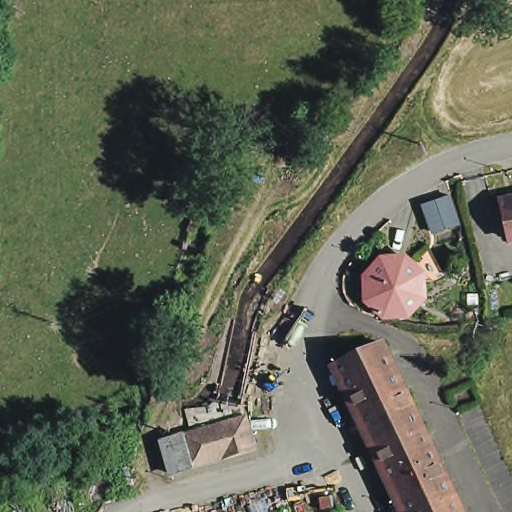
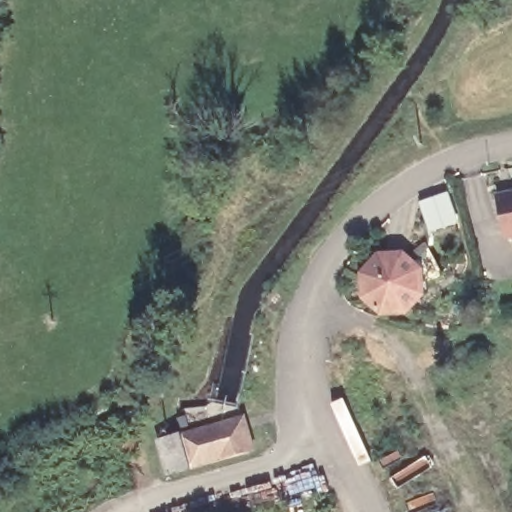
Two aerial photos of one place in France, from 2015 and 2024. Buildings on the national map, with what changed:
unchanged [(512,245),(503,247),(494,202),(512,197),(512,245)]
unchanged [(451,201),(461,229),(434,240),(423,213),(451,201)]
unchanged [(413,270),(416,275),(420,285),(419,294),(415,304),(411,309),(406,312),(399,315),(389,317),(381,315),(373,311),(367,303),(365,297),(363,290),(364,282),(366,274),(371,267),(380,261),(388,259),(395,260),(401,262),(408,265),(413,270)]
demolished [(350,412),(352,410),(331,365),(333,365),(380,343),(458,512),(397,512),(360,434),(350,412)]
unchanged [(151,445),(170,440),(205,429),(203,413),(205,406),(208,404),(223,407),(227,408),(231,422),(235,421),(244,455),(217,462),(180,473),(161,478),(151,445)]

